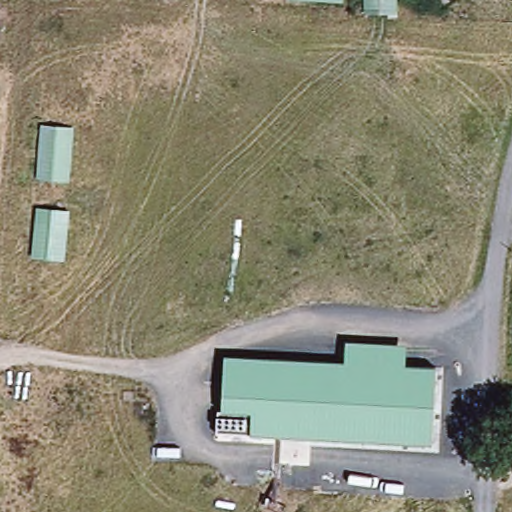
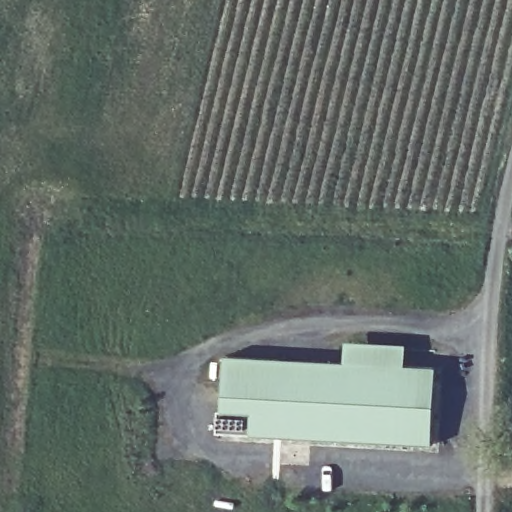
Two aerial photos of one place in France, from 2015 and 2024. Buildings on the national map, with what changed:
demolished [(37,179),(40,124),(74,127),(71,183),(37,179)]
demolished [(33,256),(38,207),(70,211),(68,261),(33,256)]
unchanged [(345,364),(347,340),(408,342),(407,367),(437,369),(433,446),(251,436),(253,412),(222,411),(227,357),(345,364)]

